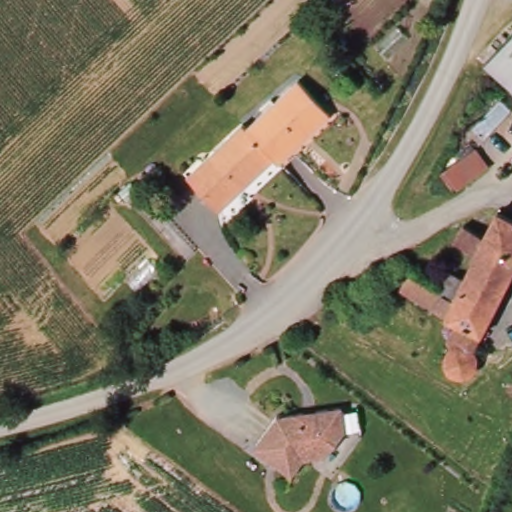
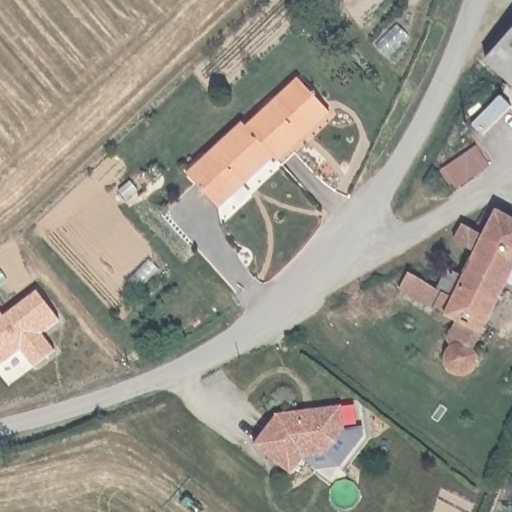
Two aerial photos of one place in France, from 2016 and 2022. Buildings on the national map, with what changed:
unchanged [(512,32),(512,87),(484,62),(512,32)]
unchanged [(278,158),(245,124),(302,74),(336,115),(283,163),(278,158)]
unchanged [(278,158),(220,210),(187,169),(240,120),(245,124),(278,158)]
unchanged [(477,142),(491,162),(456,188),(442,168),(477,142)]
unchanged [(403,274),(435,291),(445,270),(464,279),(474,254),(457,243),(465,224),(488,235),(500,209),(512,216),(512,277),(471,350),(472,354),(473,365),(469,373),(463,377),(454,378),(446,374),(443,372),(440,365),(441,360),(443,352),(448,347),(444,342),(455,321),(425,305),(389,285),(402,274),(403,274)]
new [(36,290),(58,318),(42,334),(55,349),(35,365),(21,348),(0,365),(0,310),(3,314),(36,290)]
unchanged [(296,469),(259,440),(283,410),(347,402),(350,426),(331,450),(309,453),(296,469)]

